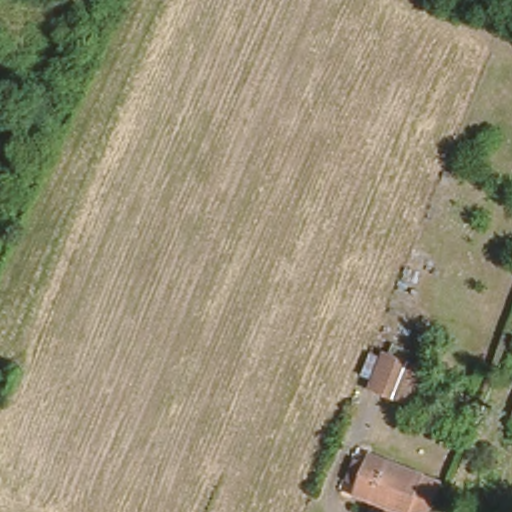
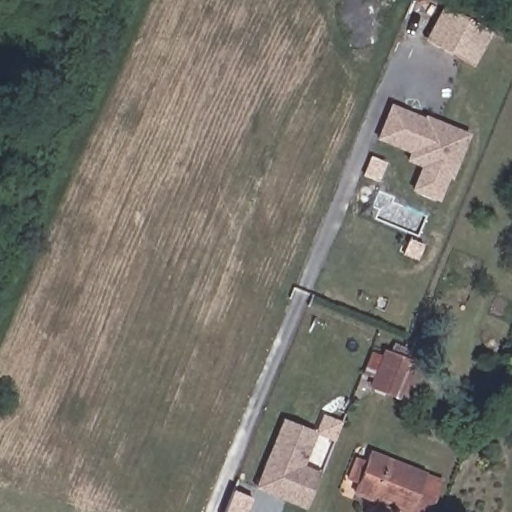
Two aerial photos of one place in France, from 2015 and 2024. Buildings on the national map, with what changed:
new [(475,66),(423,38),(445,2),(496,32),(475,66)]
new [(452,179),(447,178),(438,202),(411,190),(421,165),(406,159),(408,154),(372,138),(388,103),(422,118),(423,114),(471,134),(452,179)]
unchanged [(415,401),(402,396),(370,383),(373,374),(362,369),(372,347),(382,352),(385,346),(389,348),(392,339),(417,348),(412,358),(417,359),(430,364),(415,401)]
unchanged [(511,412),(512,409),(512,423),(507,421),(511,412)]
new [(304,466),(322,474),(306,511),(255,490),(283,419),(318,434),(304,466)]
unchanged [(362,459),(366,449),(437,478),(422,512),(412,512),(403,509),(402,511),(348,489),(352,479),(342,475),(351,454),(362,459)]

